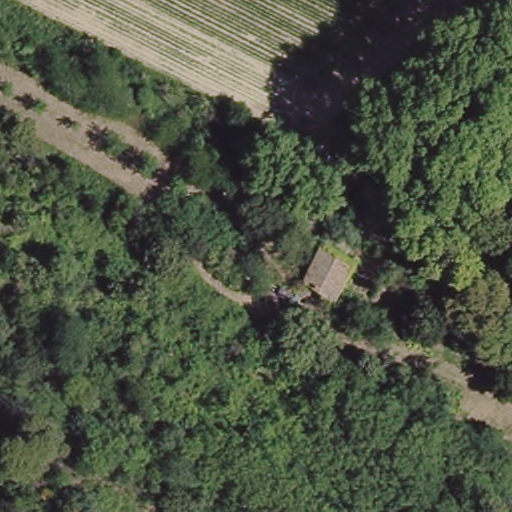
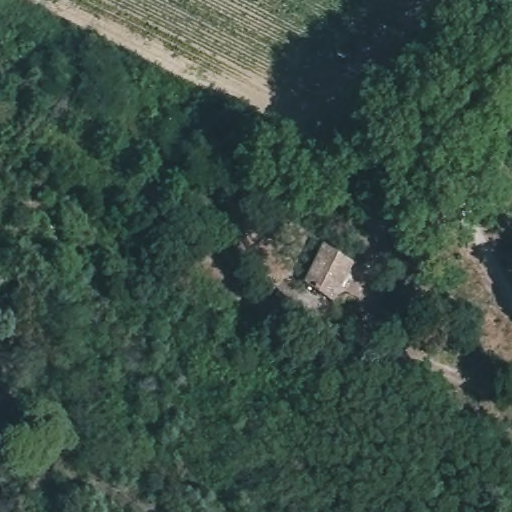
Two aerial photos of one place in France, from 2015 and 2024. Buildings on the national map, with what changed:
unchanged [(326,247),(354,264),(334,299),(305,281),(326,247)]

